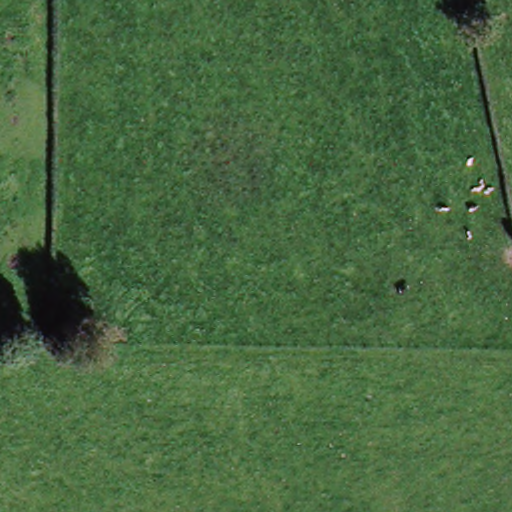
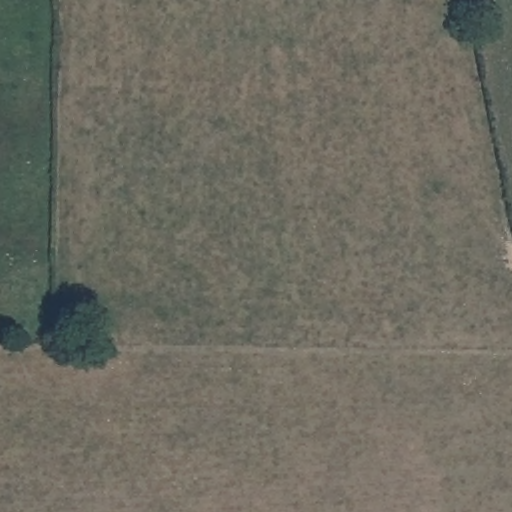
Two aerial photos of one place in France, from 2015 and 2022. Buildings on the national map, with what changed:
[]

